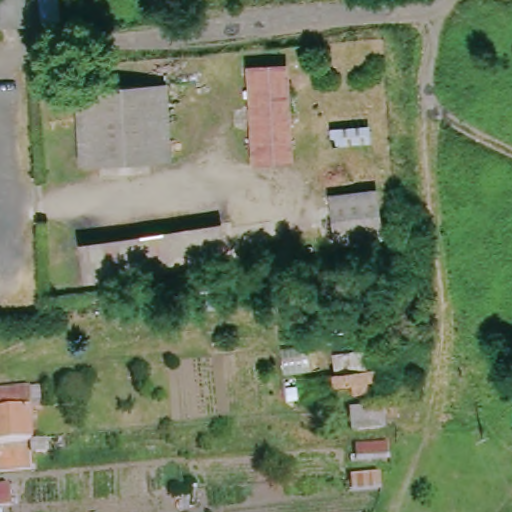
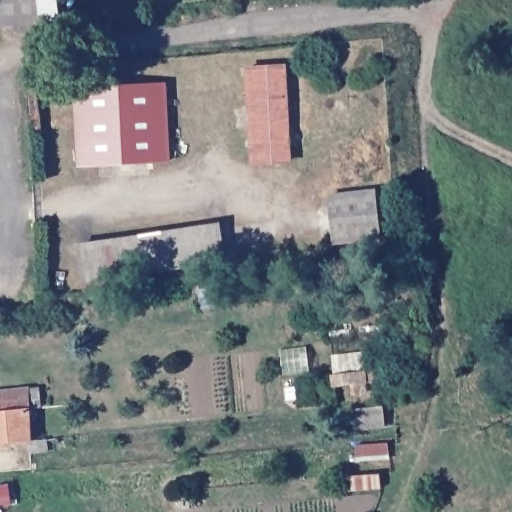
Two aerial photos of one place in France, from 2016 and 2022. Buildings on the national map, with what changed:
unchanged [(37,22),(0,26),(0,0),(35,0),(37,22)]
unchanged [(284,163),(249,165),(244,72),(279,69),(284,163)]
unchanged [(166,168),(76,172),(72,96),(162,91),(166,168)]
unchanged [(379,240),(334,248),(325,202),(371,193),(379,240)]
unchanged [(77,255),(217,226),(222,259),(83,288),(77,255)]
unchanged [(25,394),(27,414),(20,415),(21,443),(0,446),(0,396),(25,394)]
unchanged [(383,419),(352,423),(350,401),(380,398),(383,419)]
unchanged [(39,454),(22,455),(21,443),(38,441),(39,454)]

